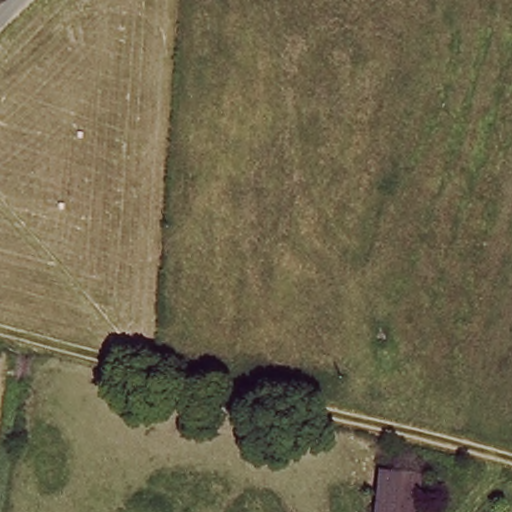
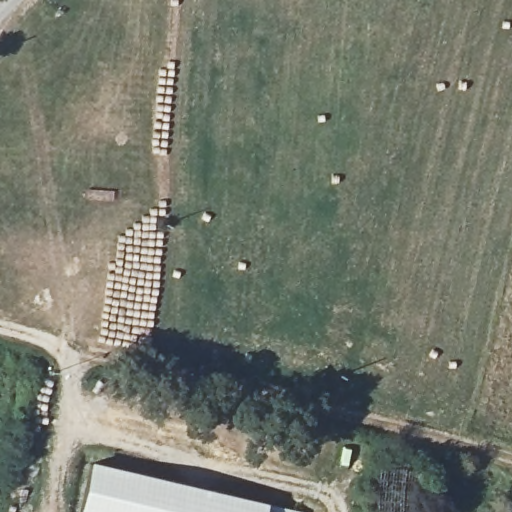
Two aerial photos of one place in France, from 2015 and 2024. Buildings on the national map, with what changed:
new [(90,463),(266,504),(296,512),(79,512),(90,463)]
unchanged [(426,479),(422,512),(378,512),(383,471),(426,479)]

